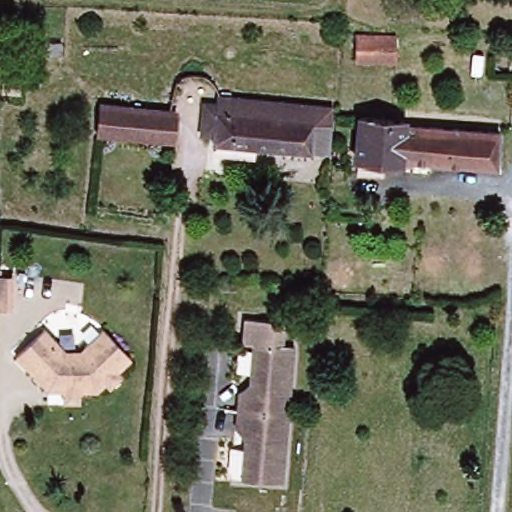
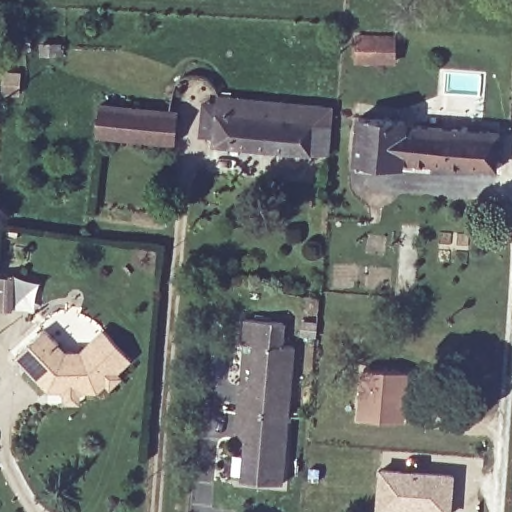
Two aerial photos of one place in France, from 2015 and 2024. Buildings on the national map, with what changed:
unchanged [(392,65),(353,61),(355,38),(393,40),(392,65)]
unchanged [(326,150),(320,155),(211,147),(212,99),(218,100),(218,92),(226,94),(226,100),(328,108),(326,150)]
unchanged [(171,142),(95,138),(98,106),(173,110),(171,142)]
unchanged [(407,123),(407,129),(497,136),(495,171),(404,165),(404,171),(355,167),(357,121),(407,123)]
unchanged [(0,275),(13,275),(13,310),(0,310),(0,275)]
unchanged [(284,485),(247,481),(249,436),(239,436),(242,398),(252,398),(256,351),(245,350),(247,325),(286,329),(284,354),(295,355),(284,485)]
unchanged [(61,400),(61,395),(54,388),(48,388),(20,365),(41,337),(54,344),(53,348),(62,355),(77,358),(92,353),(88,349),(102,338),(122,364),(100,380),(103,385),(97,390),(94,386),(86,392),(78,391),(76,395),(75,400),(61,400)]
new [(405,425),(362,422),(365,373),(408,376),(405,425)]
new [(450,512),(397,512),(377,510),(380,471),(452,476),(450,512)]

